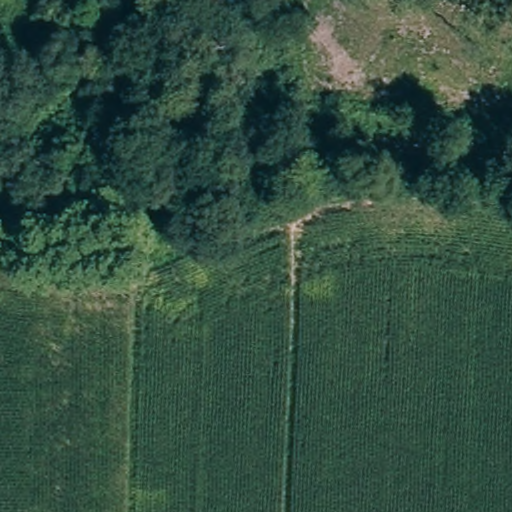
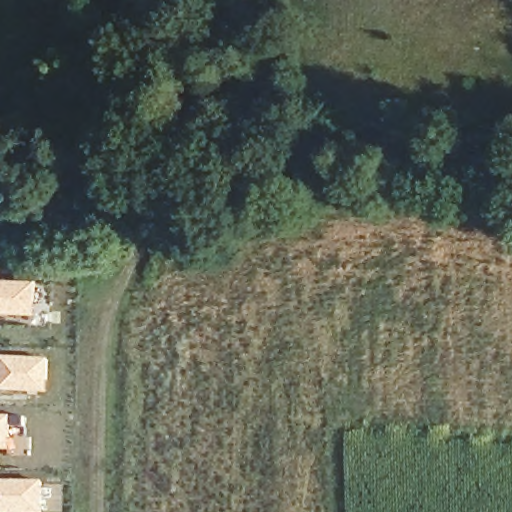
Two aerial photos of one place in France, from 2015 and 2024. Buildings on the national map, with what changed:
new [(41,315),(0,313),(0,279),(41,280),(41,315)]
new [(4,357),(54,360),(52,394),(2,392),(4,357)]
new [(14,451),(0,451),(0,417),(15,417),(14,451)]
new [(47,512),(0,512),(0,481),(47,482),(47,512)]

